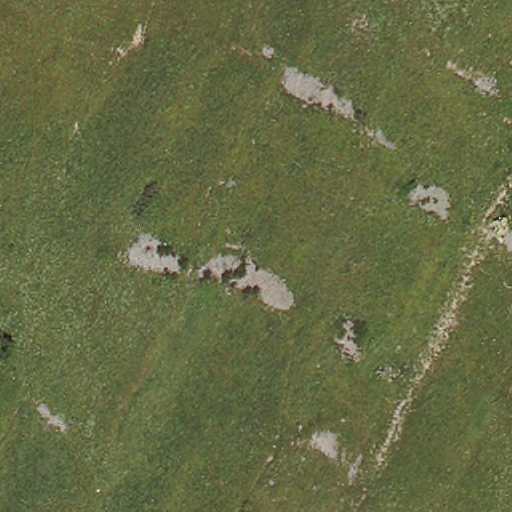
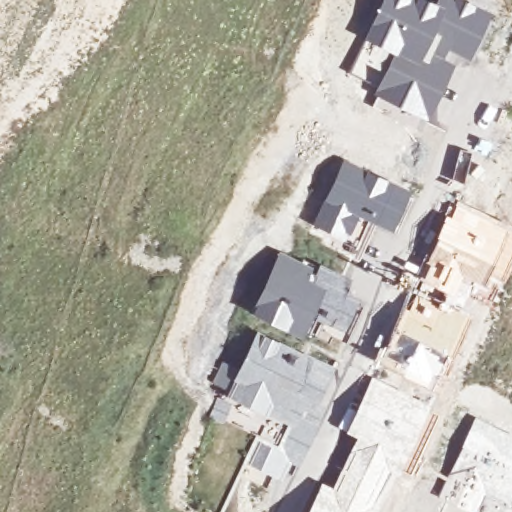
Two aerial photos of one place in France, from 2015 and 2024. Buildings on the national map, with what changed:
new [(371,15),(378,0),(433,0),(434,0),(466,0),(489,10),(467,59),(447,50),(444,57),(432,51),(427,62),(389,51),(362,39),(371,15)]
new [(362,39),(389,51),(375,85),(348,71),(362,39)]
new [(375,85),(389,51),(427,62),(432,51),(444,57),(452,62),(426,120),(371,92),(375,85)]
new [(376,224),(359,260),(354,257),(322,243),(325,231),(314,227),(326,200),(345,159),(411,190),(392,231),(376,224)]
new [(455,198),(512,228),(512,245),(505,258),(497,255),(492,262),(490,262),(435,236),(455,198)]
new [(425,265),(422,263),(435,236),(490,262),(477,285),(475,285),(472,287),(470,286),(466,293),(470,295),(466,301),(419,280),(425,265)]
new [(330,323),(327,328),(325,327),(320,337),(315,334),(312,341),(300,336),(299,340),(246,313),(275,246),(314,263),(309,270),(316,274),(321,264),(319,263),(321,260),(353,275),(347,288),(361,295),(357,298),(344,330),(330,323)]
new [(397,370),(375,360),(391,328),(412,288),(467,310),(444,354),(426,385),(397,370)]
new [(250,465),(262,441),(280,449),(291,425),(230,397),(257,332),(312,357),(334,367),(317,403),(326,407),(318,425),(299,465),(296,465),(293,475),(287,472),(282,480),(250,465)]
new [(331,485),(354,436),(343,430),(370,375),(430,403),(427,410),(419,429),(402,463),(382,509),(386,510),(385,512),(305,512),(320,481),(331,485)]
new [(475,416),(512,435),(512,491),(506,502),(466,485),(457,504),(437,496),(475,416)]

